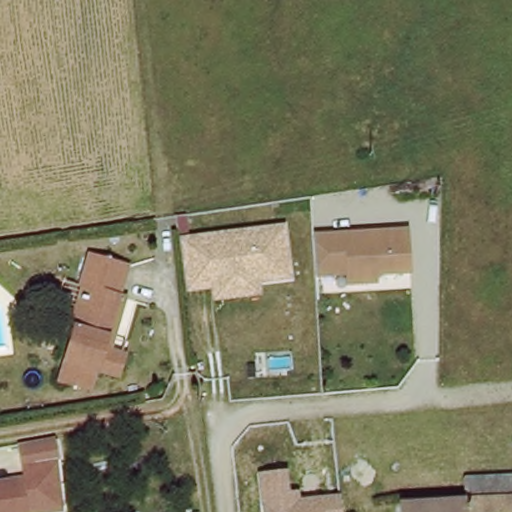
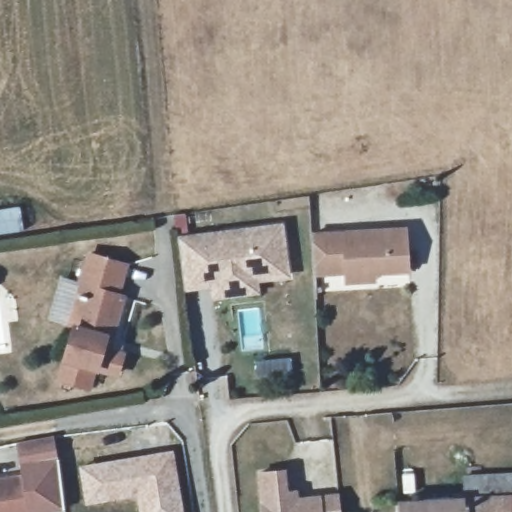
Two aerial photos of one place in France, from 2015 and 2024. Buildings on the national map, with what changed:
new [(24,231),(0,235),(0,208),(20,205),(24,231)]
unchanged [(291,283),(264,285),(264,295),(213,301),(211,292),(188,294),(180,240),(284,224),(291,283)]
unchanged [(409,228),(411,275),(379,277),(379,285),(346,287),(345,278),(311,279),(312,233),(409,228)]
unchanged [(90,249),(136,265),(119,343),(139,350),(130,379),(103,373),(97,391),(59,381),(90,249)]
unchanged [(50,437),(55,461),(18,468),(13,443),(50,437)]
new [(174,449),(184,512),(138,512),(136,497),(85,505),(78,464),(174,449)]
unchanged [(343,512),(262,512),(256,474),(289,469),(292,493),(299,492),(301,498),(342,495),(343,512)]
unchanged [(26,512),(0,512),(0,480),(20,477),(26,512)]
unchanged [(512,490),(512,512),(504,512),(501,491),(512,490)]
unchanged [(501,491),(504,512),(473,512),(470,493),(501,491)]
unchanged [(409,496),(450,494),(470,493),(473,512),(410,512),(409,496)]

